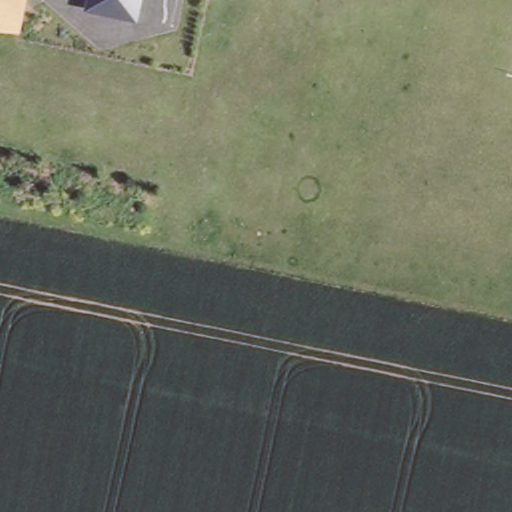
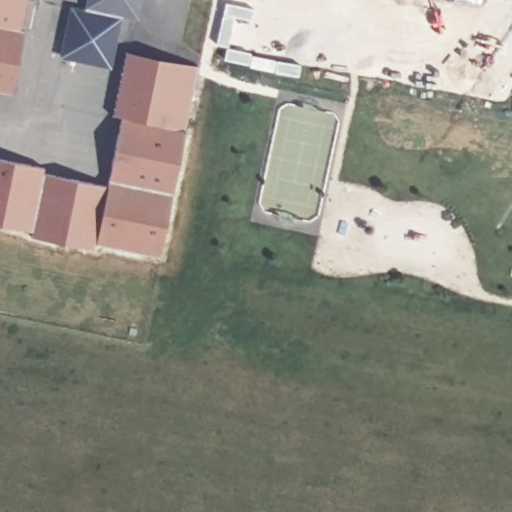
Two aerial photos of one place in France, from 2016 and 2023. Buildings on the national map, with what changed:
unchanged [(16,30),(0,27),(0,0),(22,0),(16,30)]
unchanged [(133,19),(84,8),(86,0),(137,0),(133,19)]
new [(110,68),(58,57),(70,5),(84,8),(121,16),(110,68)]
new [(26,32),(11,95),(0,93),(0,27),(16,30),(26,32)]
new [(44,167),(44,174),(109,187),(123,118),(113,115),(127,52),(198,67),(184,133),(160,258),(95,244),(94,250),(31,237),(32,232),(0,225),(0,158),(44,167)]

